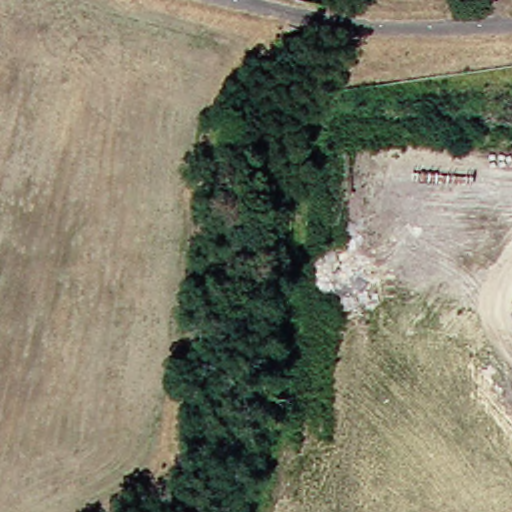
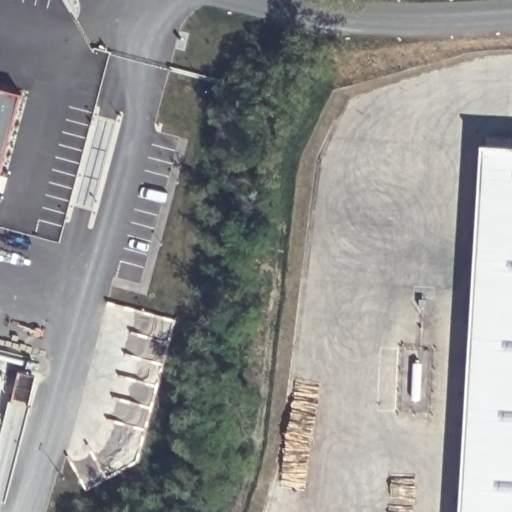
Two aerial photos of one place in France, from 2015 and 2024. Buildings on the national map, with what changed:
new [(0,89),(24,96),(0,181),(0,89)]
new [(512,147),(512,512),(461,512),(482,146),(512,147)]

